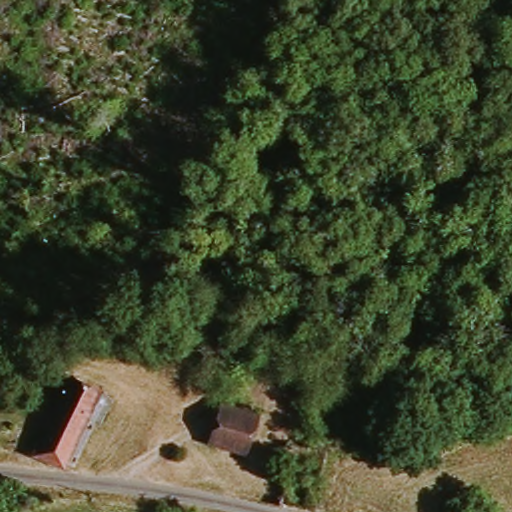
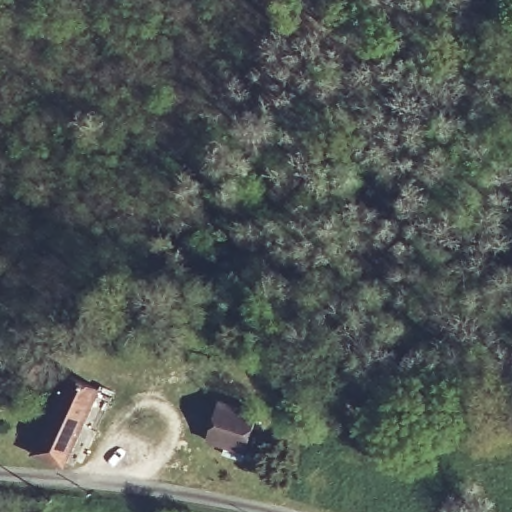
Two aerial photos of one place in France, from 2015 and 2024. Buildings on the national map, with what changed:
unchanged [(98,392),(63,465),(35,455),(70,381),(98,392)]
unchanged [(207,440),(218,405),(261,416),(247,451),(207,440)]

